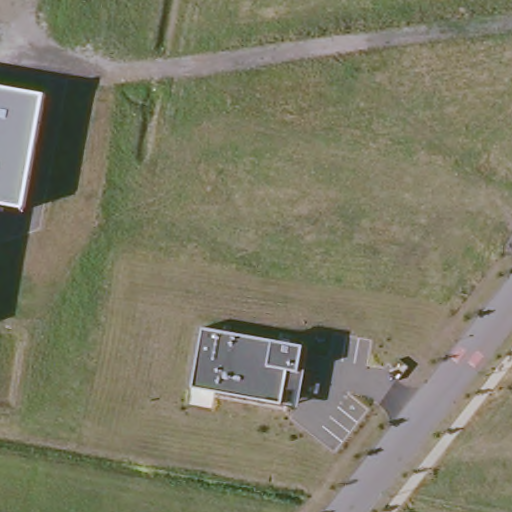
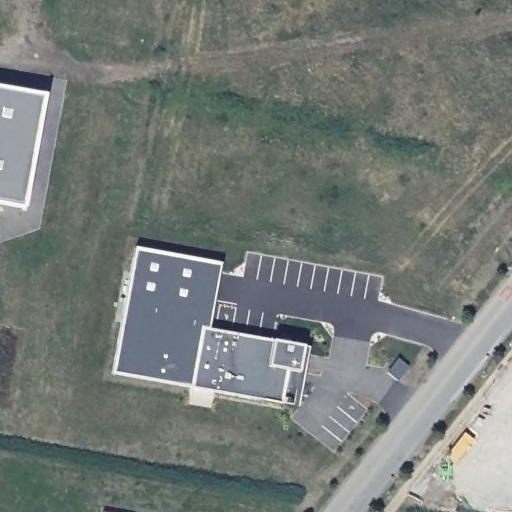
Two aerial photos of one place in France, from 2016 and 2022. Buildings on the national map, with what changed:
unchanged [(22,207),(0,203),(0,87),(45,95),(22,207)]
new [(116,373),(137,247),(222,262),(205,330),(195,389),(116,373)]
unchanged [(275,342),(306,346),(312,347),(300,407),(195,389),(205,330),(275,342)]

